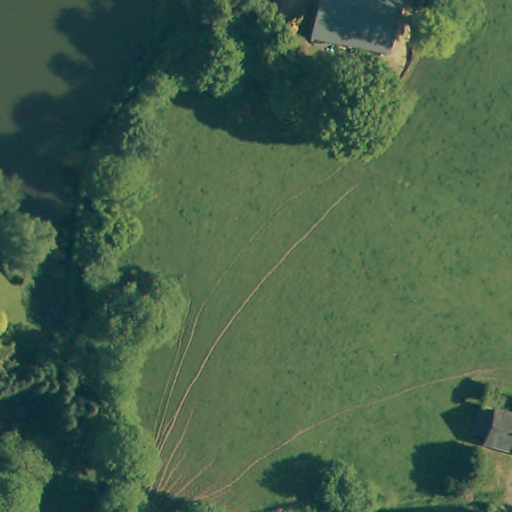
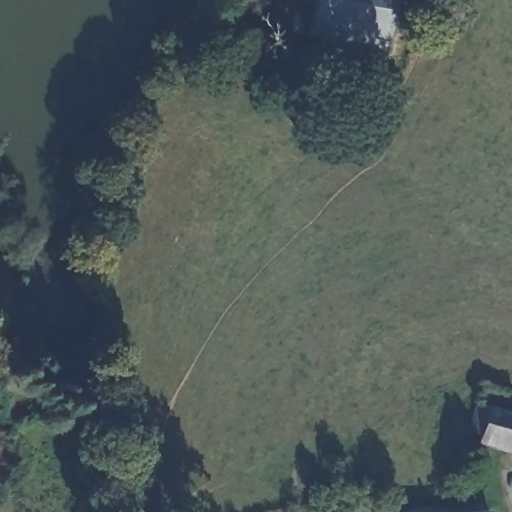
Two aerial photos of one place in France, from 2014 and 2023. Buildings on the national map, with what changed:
unchanged [(297,30),(304,0),(387,0),(376,49),(297,30)]
unchanged [(483,442),(486,434),(471,430),(483,384),(512,391),(512,450),(483,442)]
unchanged [(460,512),(487,509),(487,512),(460,512)]

